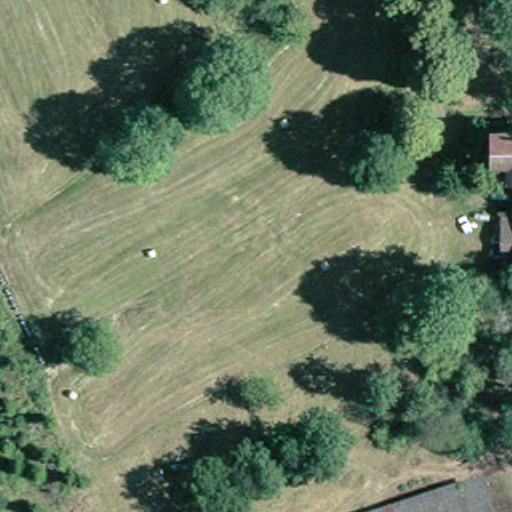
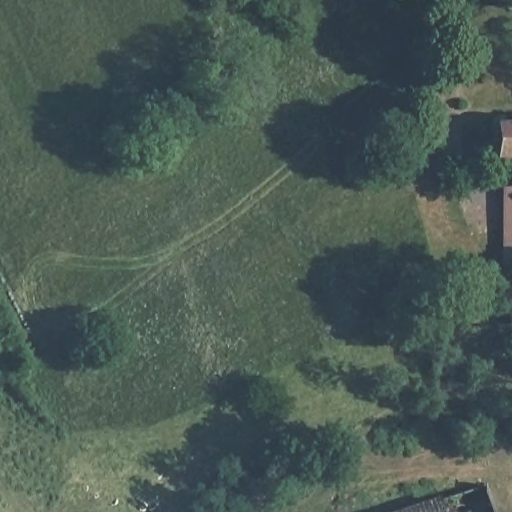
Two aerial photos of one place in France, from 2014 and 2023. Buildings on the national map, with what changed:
unchanged [(511,159),(503,160),(502,129),(512,128),(512,171),(511,159)]
unchanged [(484,481),(497,512),(389,512),(484,481)]

